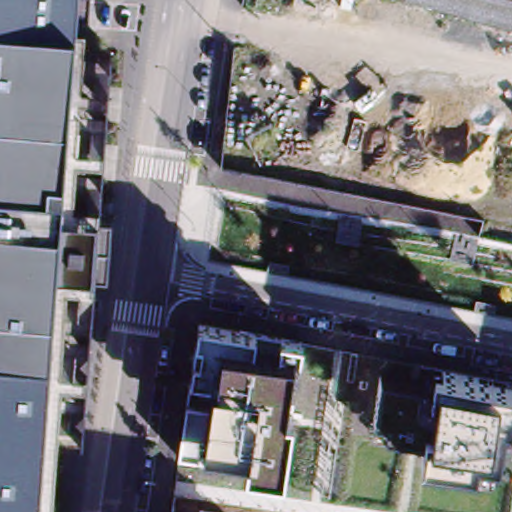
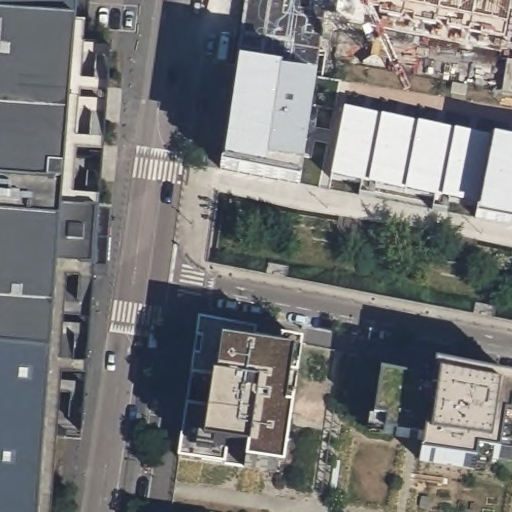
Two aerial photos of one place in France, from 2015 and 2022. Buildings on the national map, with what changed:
unchanged [(50,436),(44,512),(0,512),(0,0),(85,0),(80,51),(50,436)]
unchanged [(472,18),(459,14),(405,0),(512,0),(512,29),(472,18)]
unchanged [(50,436),(80,51),(110,50),(98,214),(111,217),(107,277),(95,275),(83,437),(50,436)]
new [(235,55),(322,66),(322,68),(340,69),(335,103),(308,99),(297,186),(218,171),(233,68),(235,55)]
new [(477,221),(480,209),(451,204),(449,215),(434,213),(436,201),(378,190),(375,201),(360,199),(363,187),(333,182),(346,114),(512,146),(512,228),(477,221)]
unchanged [(281,473),(178,457),(198,324),(301,343),(281,473)]
unchanged [(509,461),(495,459),(493,471),(420,458),(423,439),(372,430),(381,376),(430,389),(435,369),(512,385),(512,442),(509,461)]

